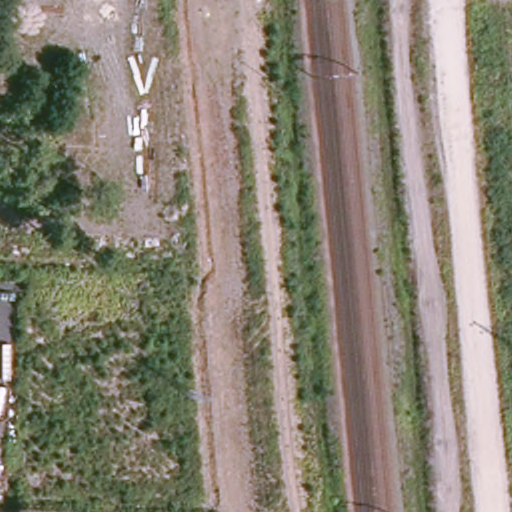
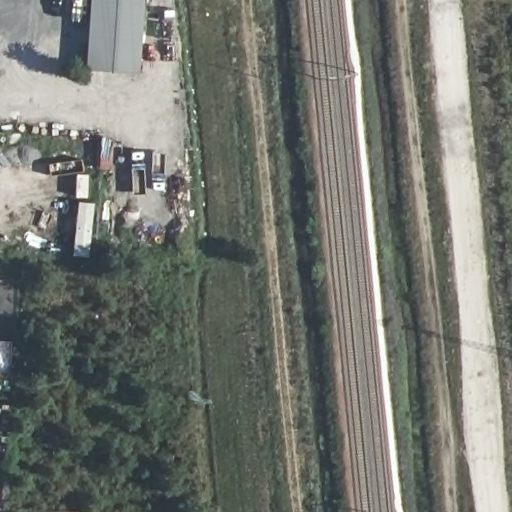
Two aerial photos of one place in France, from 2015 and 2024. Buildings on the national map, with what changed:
new [(86,0),(139,0),(133,68),(81,64),(86,0)]

